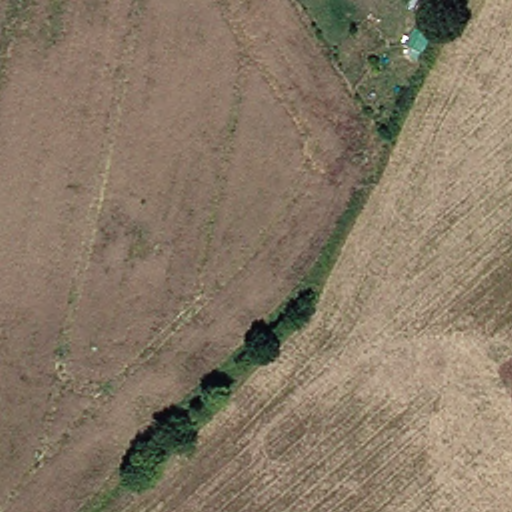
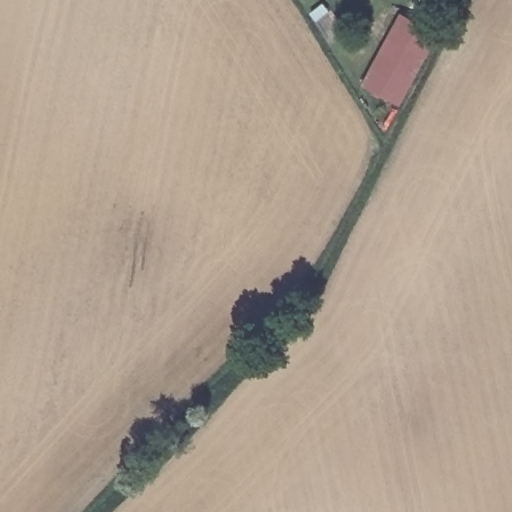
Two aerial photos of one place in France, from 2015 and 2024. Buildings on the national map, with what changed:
new [(399,107),(362,86),(401,13),(437,37),(399,107)]

